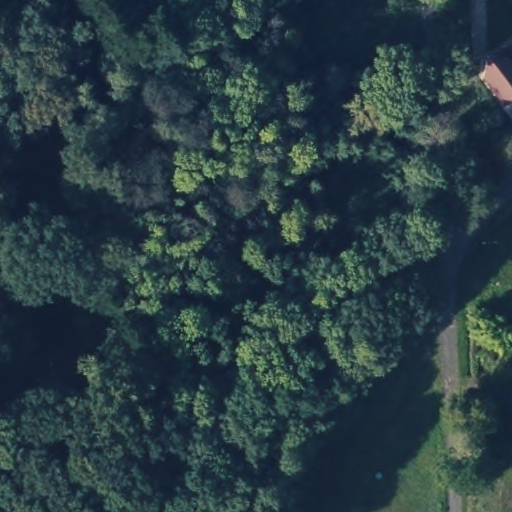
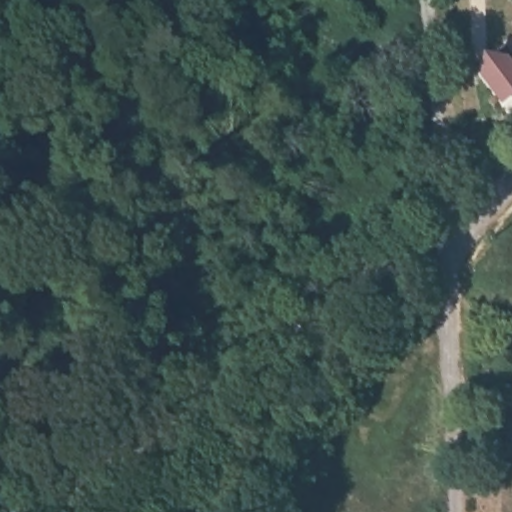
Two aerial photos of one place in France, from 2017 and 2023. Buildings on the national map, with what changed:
unchanged [(483,74),(485,60),(510,63),(512,65),(512,94),(503,100),(483,74)]

